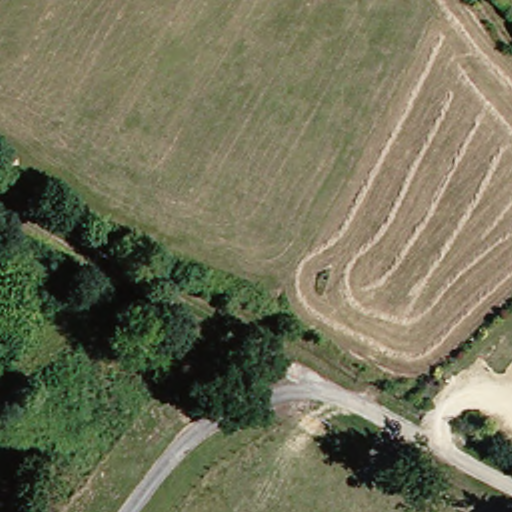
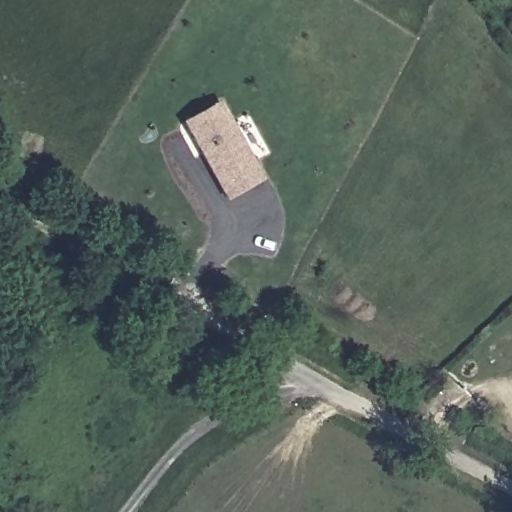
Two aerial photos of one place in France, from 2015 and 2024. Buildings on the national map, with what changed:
new [(182,123),(220,102),(263,181),(225,202),(182,123)]

